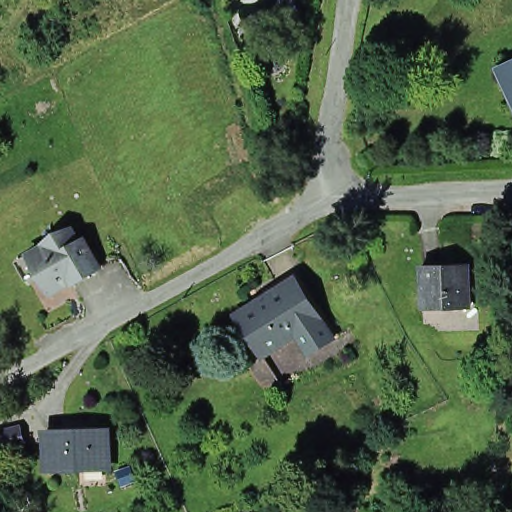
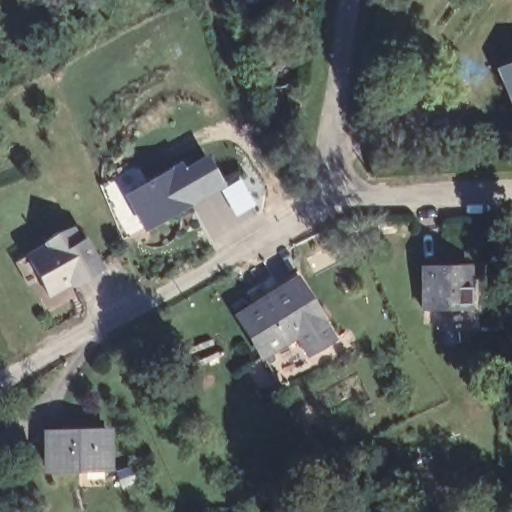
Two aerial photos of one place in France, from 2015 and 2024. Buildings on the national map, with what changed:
unchanged [(509,89),(500,67),(512,61),(512,116),(503,92),(509,89)]
new [(201,151),(204,157),(221,185),(149,227),(129,193),(177,164),(201,151)]
unchanged [(30,258),(43,250),(42,247),(55,236),(69,232),(77,246),(82,243),(100,274),(73,288),(70,282),(58,288),(59,290),(46,298),(35,279),(24,260),(30,258)]
unchanged [(471,311),(421,310),(420,264),(471,265),(471,311)]
unchanged [(338,339),(329,344),(294,282),(265,299),(259,289),(297,268),(338,339)]
unchanged [(294,282),(329,344),(303,357),(294,340),(257,359),(233,315),(265,299),(294,282)]
unchanged [(31,442),(0,449),(0,428),(26,422),(31,442)]
unchanged [(111,467),(49,468),(47,428),(111,425),(111,467)]

